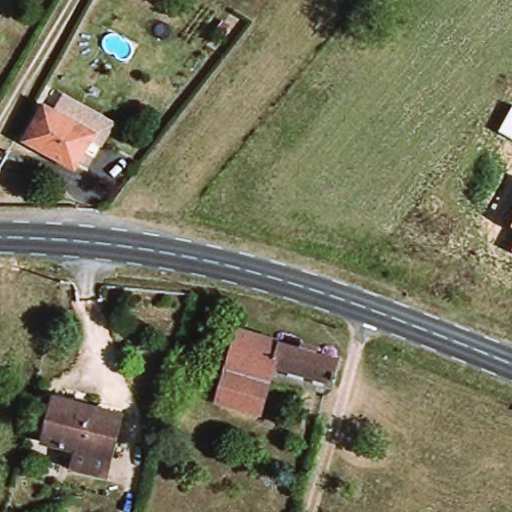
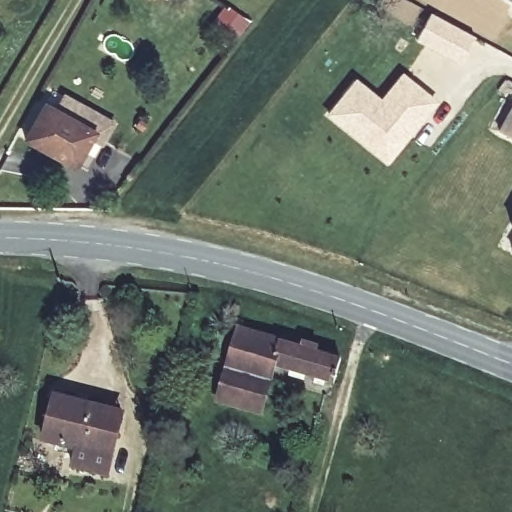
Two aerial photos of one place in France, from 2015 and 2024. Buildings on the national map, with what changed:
new [(509,0),(512,0),(512,2),(509,0)]
new [(432,14),(476,37),(463,62),(419,41),(432,14)]
new [(393,159),(333,114),(358,81),(385,101),(405,73),(439,99),(420,123),(414,131),(393,159)]
unchanged [(25,145),(43,110),(55,116),(62,100),(103,120),(115,126),(104,147),(92,141),(77,172),(25,145)]
new [(512,112),(512,135),(502,131),(512,112)]
unchanged [(511,225),(512,223),(512,225),(511,225)]
unchanged [(341,378),(317,373),(309,389),(277,382),(270,407),(215,394),(218,380),(232,330),(346,356),(341,378)]
unchanged [(108,452),(40,438),(50,396),(117,411),(108,452)]

